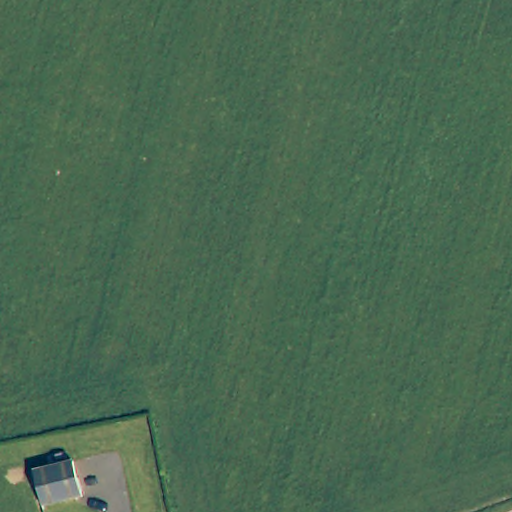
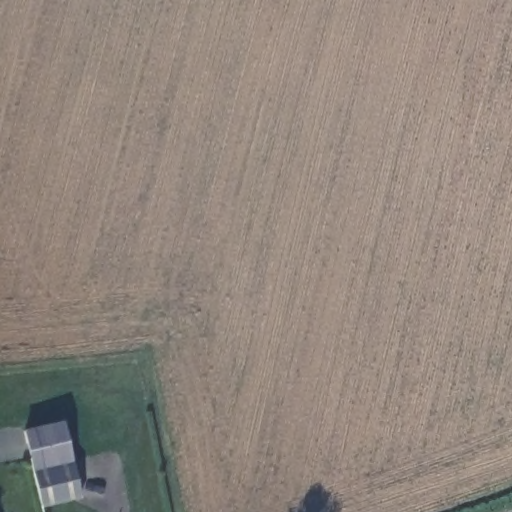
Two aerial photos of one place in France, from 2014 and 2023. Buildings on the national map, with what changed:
new [(33,475),(24,428),(62,420),(72,466),(33,475)]
unchanged [(79,496),(41,505),(33,475),(72,466),(79,496)]

